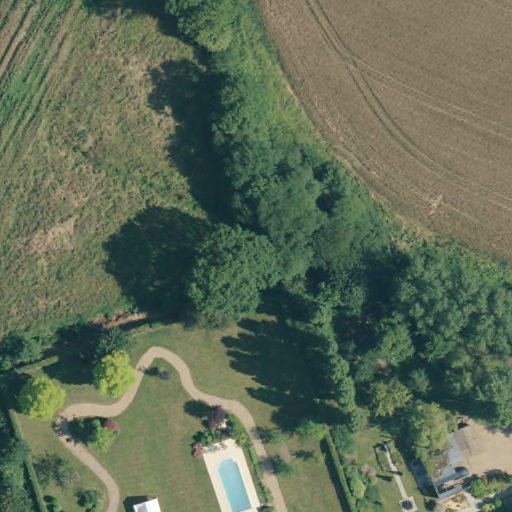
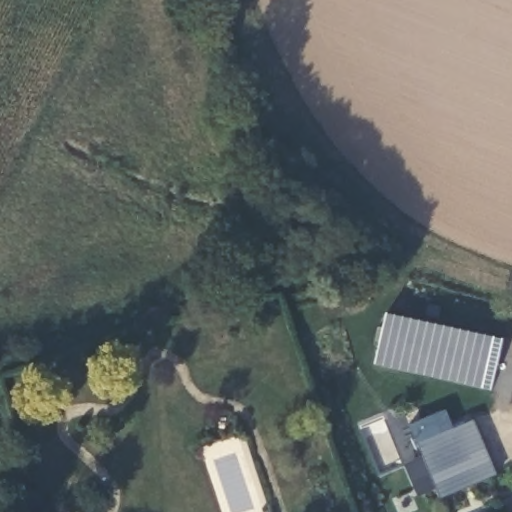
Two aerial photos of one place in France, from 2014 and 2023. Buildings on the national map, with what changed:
new [(386,314),(502,340),(492,390),(375,365),(386,314)]
new [(436,415),(443,433),(473,421),(496,475),(439,499),(410,426),(436,415)]

